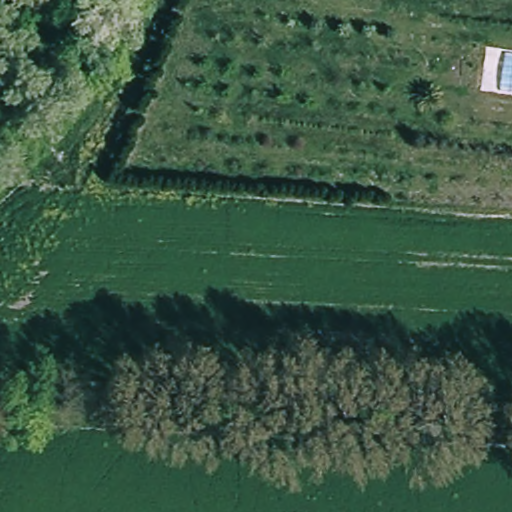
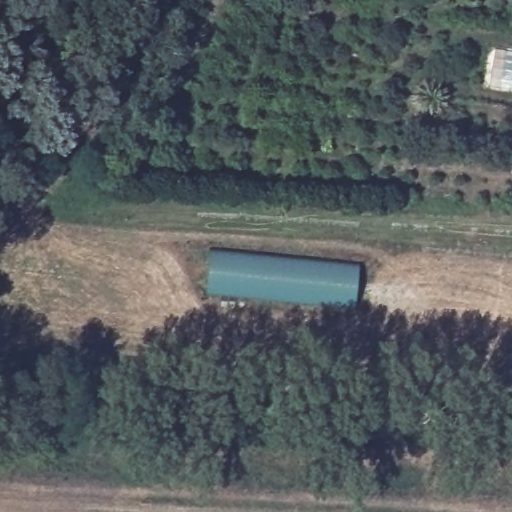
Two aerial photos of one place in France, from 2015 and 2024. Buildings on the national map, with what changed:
new [(205,294),(210,248),(360,265),(353,308),(205,294)]

